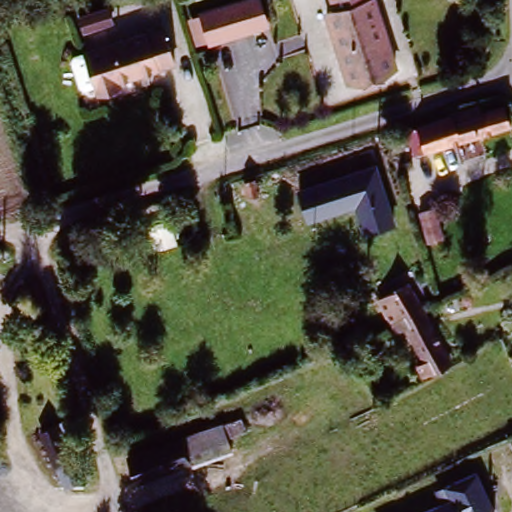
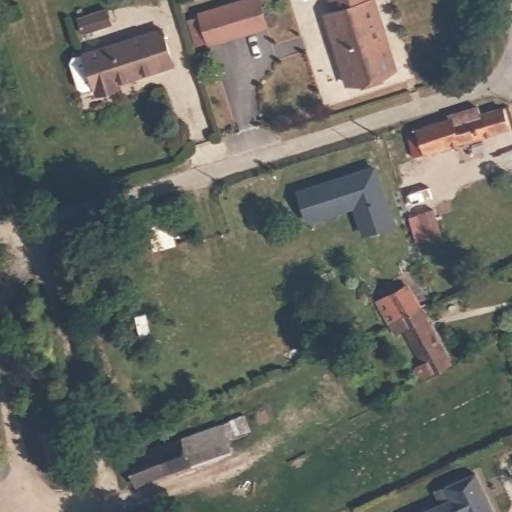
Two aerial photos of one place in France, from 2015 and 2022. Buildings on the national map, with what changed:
unchanged [(247,0),(259,0),(267,27),(210,42),(202,13),(247,0)]
unchanged [(401,67),(355,85),(327,17),(333,14),(328,0),(373,0),(401,67)]
unchanged [(114,31),(82,39),(78,20),(108,12),(114,31)]
unchanged [(160,31),(170,67),(91,91),(80,55),(160,31)]
unchanged [(512,115),(512,128),(428,156),(424,142),(415,144),(410,128),(451,115),(448,107),(472,100),(475,113),(508,103),(512,115)]
unchanged [(359,165),(364,183),(282,214),(273,186),(355,157),(351,144),(372,138),(377,160),(359,165)]
unchanged [(406,271),(425,306),(403,317),(401,318),(383,283),(406,271)]
unchanged [(425,306),(455,362),(430,374),(403,317),(425,306)]
unchanged [(233,453),(135,485),(128,459),(222,427),(233,453)]
unchanged [(80,483),(64,489),(40,441),(62,431),(80,483)]
unchanged [(431,512),(453,501),(447,487),(480,472),(499,512),(431,512)]

